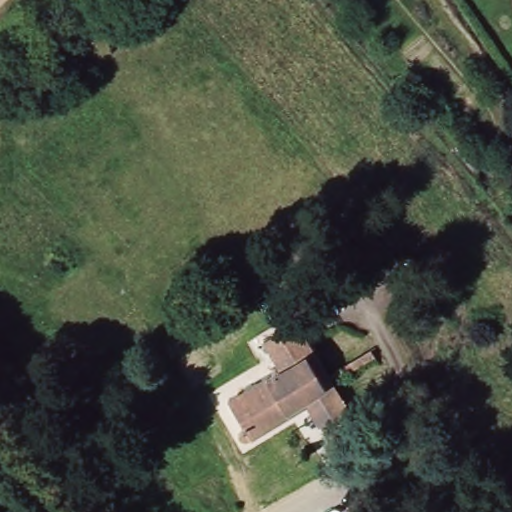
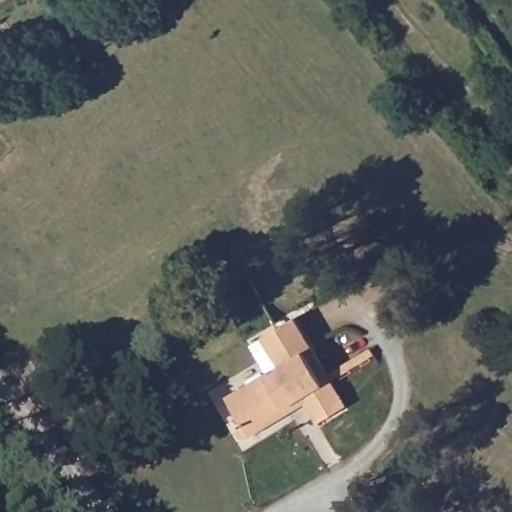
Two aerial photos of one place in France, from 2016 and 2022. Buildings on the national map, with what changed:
unchanged [(295,315),(310,338),(284,351),(287,357),(279,362),(261,333),(295,315)]
unchanged [(347,402),(317,419),(306,400),(251,433),(245,435),(239,435),(236,432),(236,425),(243,420),(228,392),(279,362),(287,357),(284,351),(310,338),(347,402)]

